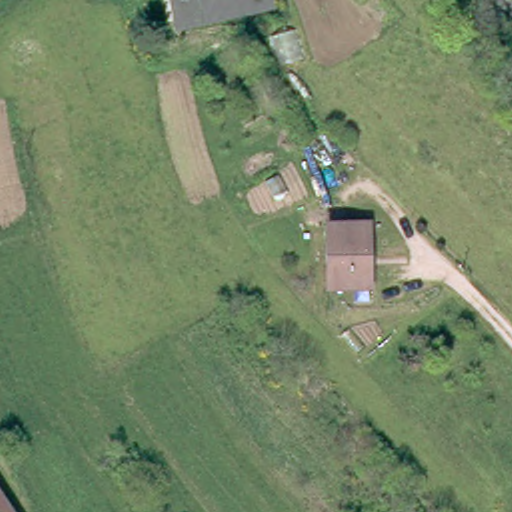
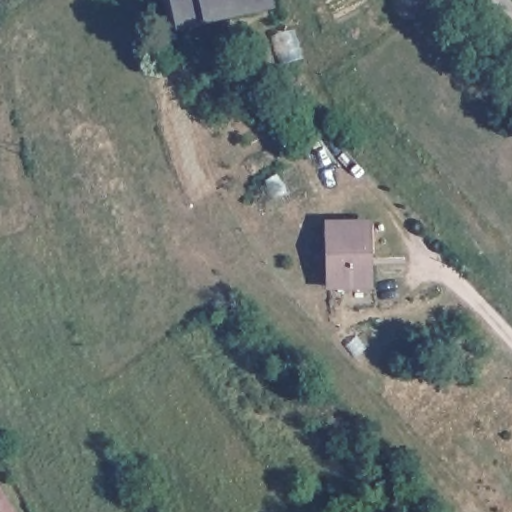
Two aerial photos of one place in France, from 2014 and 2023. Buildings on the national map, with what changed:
unchanged [(268,0),(270,8),(190,29),(181,0),(268,0)]
unchanged [(327,223),(366,222),(368,284),(328,284),(327,223)]
unchanged [(0,494),(12,512),(0,512),(0,494)]

